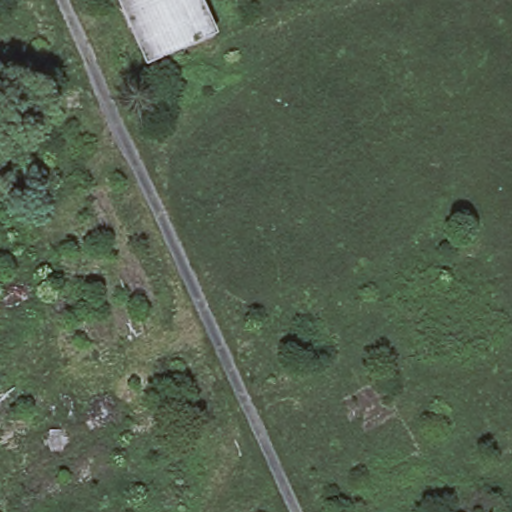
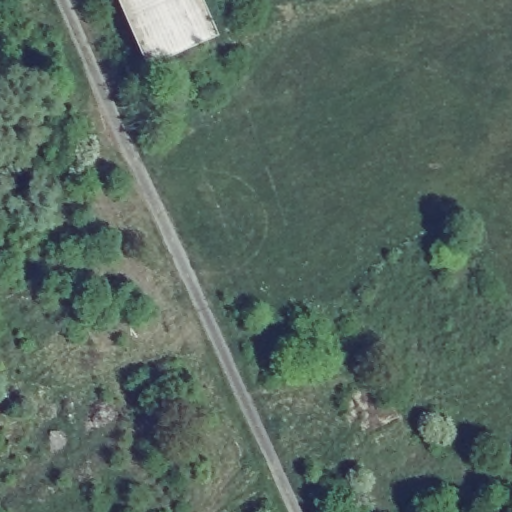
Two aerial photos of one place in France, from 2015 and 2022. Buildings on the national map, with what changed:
unchanged [(199,0),(216,38),(144,66),(119,0),(199,0)]

